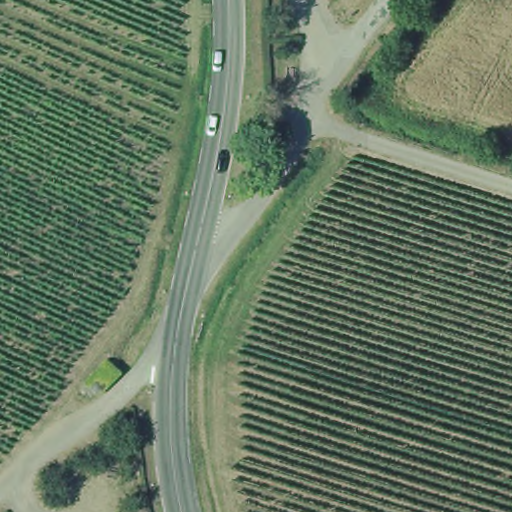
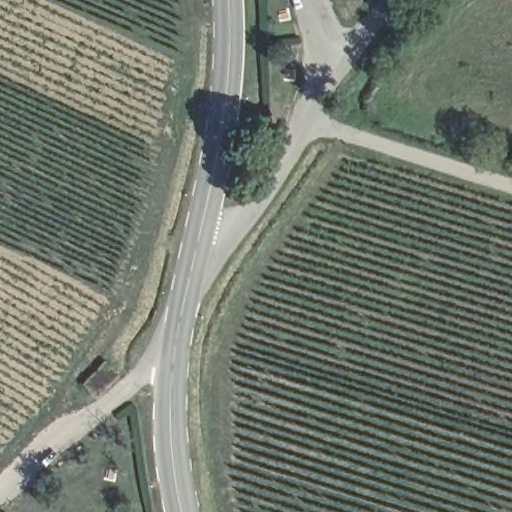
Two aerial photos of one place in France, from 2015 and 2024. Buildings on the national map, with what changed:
unchanged [(93,395),(83,385),(103,363),(113,373),(93,395)]

